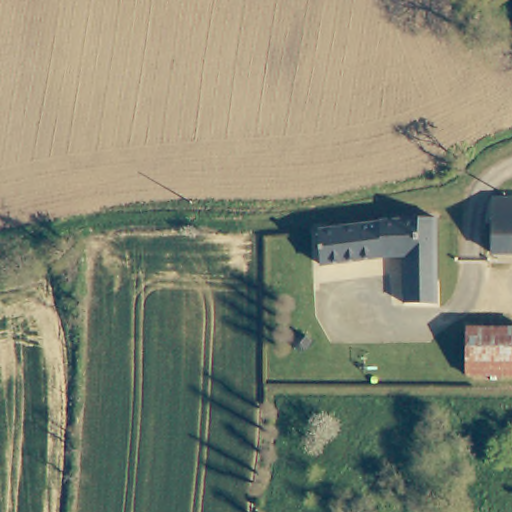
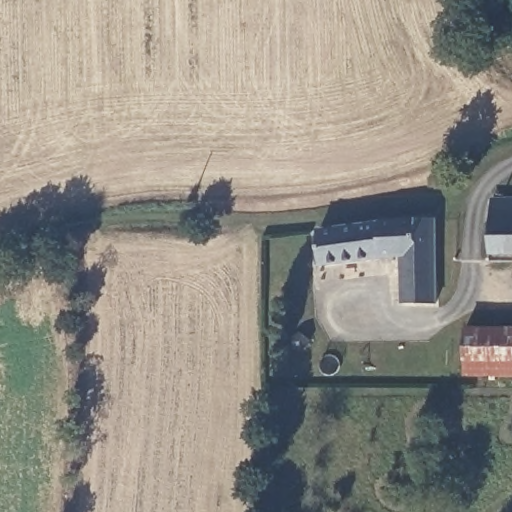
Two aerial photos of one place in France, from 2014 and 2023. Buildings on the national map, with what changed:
unchanged [(512,200),(512,255),(492,254),(491,201),(512,200)]
unchanged [(405,304),(402,257),(322,265),(320,232),(365,224),(410,220),(436,219),(437,305),(405,304)]
unchanged [(466,329),(512,330),(512,377),(467,375),(466,329)]
unchanged [(311,341),(302,351),(297,350),(293,346),(293,340),(301,331),(311,341)]

